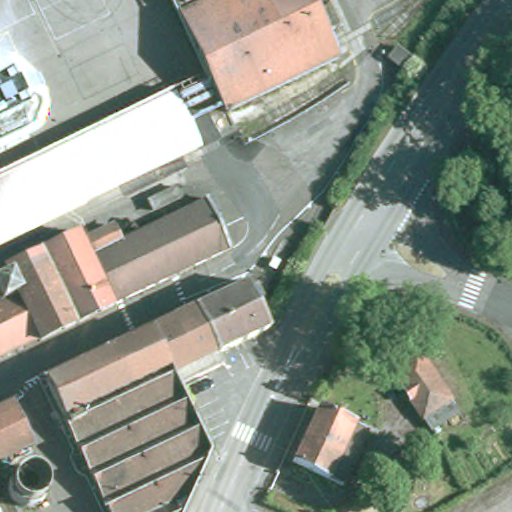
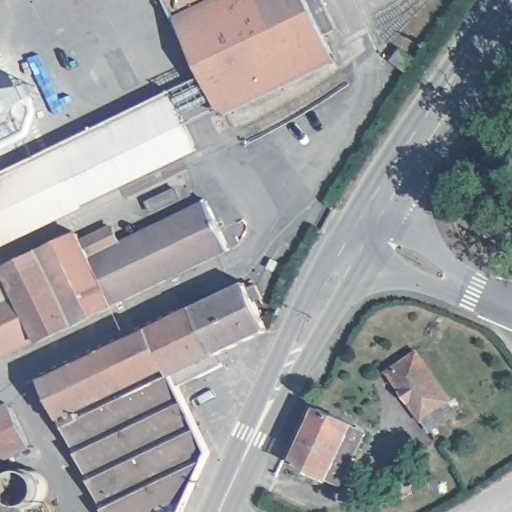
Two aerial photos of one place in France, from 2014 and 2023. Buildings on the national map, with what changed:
unchanged [(353,27),(339,34),(350,57),(238,110),(216,65),(185,0),(340,0),(353,27)]
unchanged [(238,110),(197,130),(208,152),(0,251),(0,173),(216,65),(238,110)]
unchanged [(7,87),(8,88),(18,88),(36,84),(41,95),(21,112),(25,123),(32,139),(0,153),(0,85),(5,82),(7,87)]
unchanged [(1,273),(78,237),(81,243),(110,229),(119,246),(206,204),(231,252),(0,366),(0,285),(5,282),(1,273)]
unchanged [(169,317),(173,322),(195,310),(193,306),(246,281),(271,330),(269,332),(221,359),(226,368),(184,388),(184,393),(209,460),(185,512),(107,512),(43,379),(169,317)]
unchanged [(417,351),(458,411),(434,428),(393,369),(417,351)]
unchanged [(291,461),(317,407),(353,425),(366,432),(358,449),(341,485),(291,461)]
unchanged [(0,468),(0,419),(20,410),(40,449),(0,468)]

